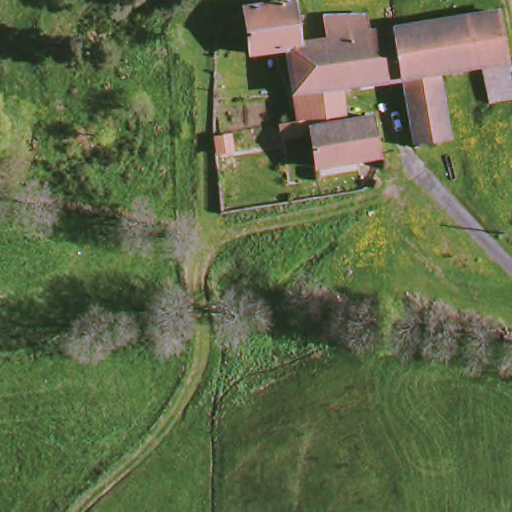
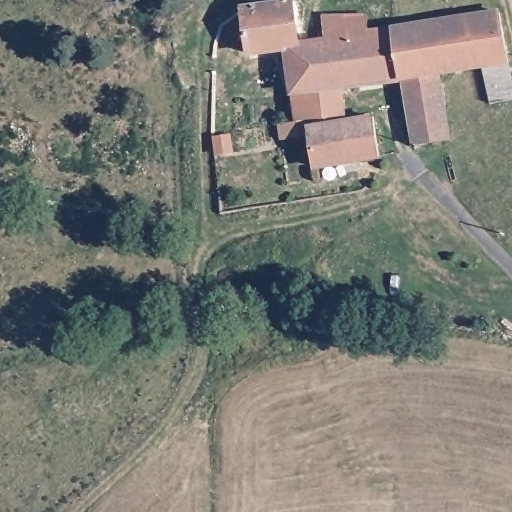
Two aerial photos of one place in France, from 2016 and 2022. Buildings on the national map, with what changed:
unchanged [(294,117),(292,97),(284,98),(284,87),(289,86),(284,52),(246,59),(241,32),(238,10),(284,0),(289,0),(296,42),(327,37),(333,90),(348,88),(350,98),(351,106),(321,114),(294,117)]
unchanged [(406,78),(399,26),(456,18),(453,2),(472,0),(480,0),(483,13),(506,10),(512,59),(443,71),(452,135),(416,143),(406,78)]
unchanged [(364,85),(361,86),(354,32),(327,37),(324,15),(359,11),(363,33),(399,26),(406,78),(364,85)]
unchanged [(306,170),(301,149),(312,147),(308,128),(323,124),(321,114),(351,106),(353,116),(377,112),(384,151),(306,170)]

